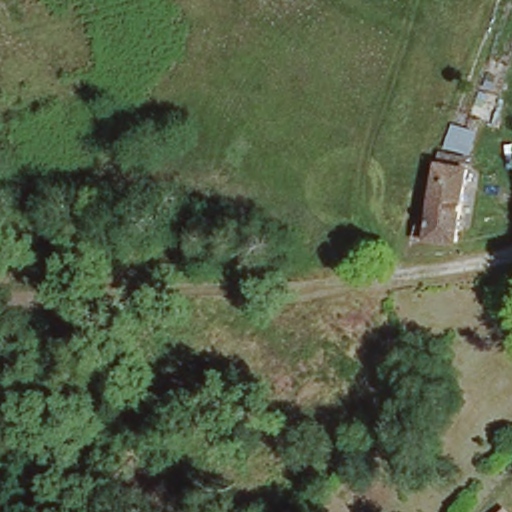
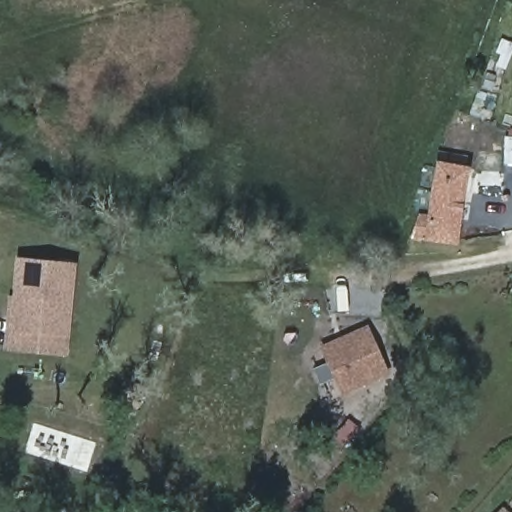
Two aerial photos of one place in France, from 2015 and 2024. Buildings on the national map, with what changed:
unchanged [(457,244),(421,235),(429,214),(441,215),(444,172),(466,175),(457,244)]
new [(71,262),(67,332),(62,355),(3,350),(8,330),(15,257),(71,262)]
demolished [(341,340),(331,305),(365,291),(377,328),(341,340)]
new [(382,381),(339,396),(318,345),(368,325),(382,381)]
unchanged [(502,505),(509,512),(496,512),(502,505)]

